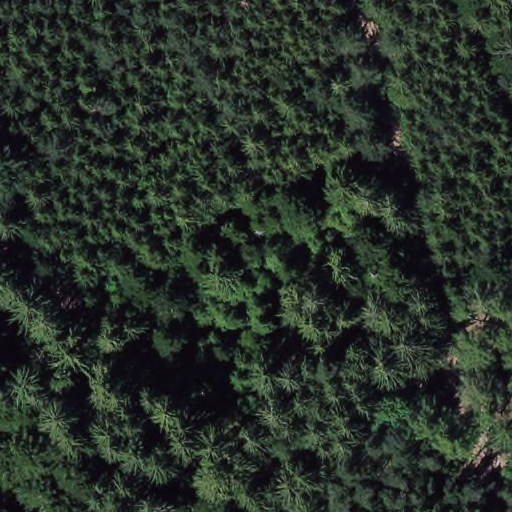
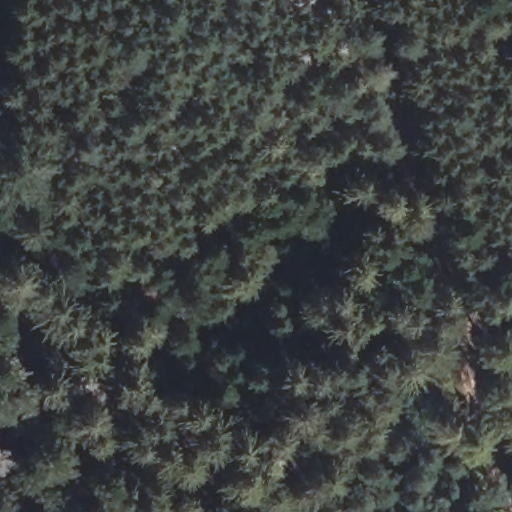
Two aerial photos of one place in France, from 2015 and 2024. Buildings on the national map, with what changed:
[]

